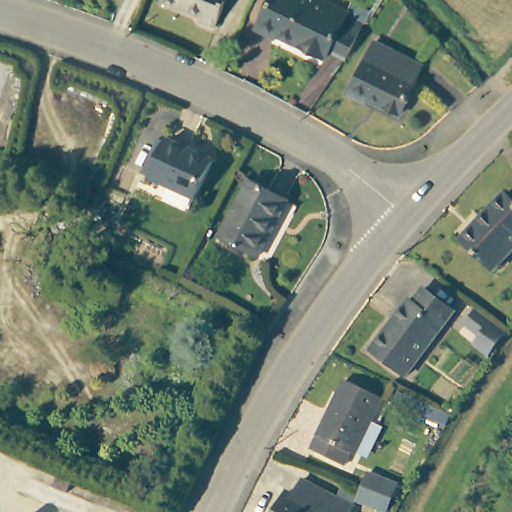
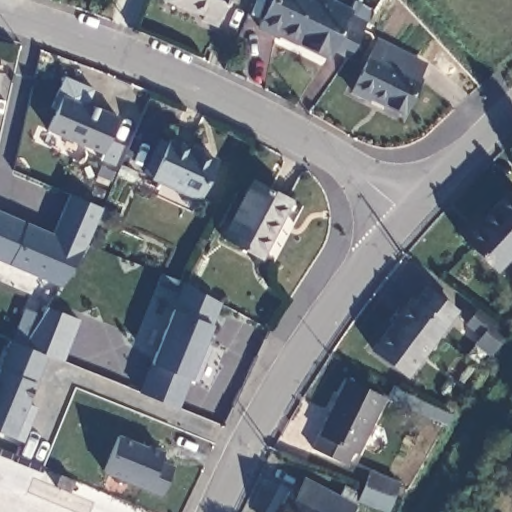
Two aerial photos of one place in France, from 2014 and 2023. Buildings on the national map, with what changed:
unchanged [(217,24),(202,16),(204,10),(177,0),(228,0),(217,24)]
unchanged [(367,15),(345,54),(331,45),(327,54),(280,30),(276,36),(258,27),(271,0),(337,0),(367,15)]
unchanged [(403,107),(371,88),(365,90),(352,84),(380,34),(408,50),(422,59),(415,72),(423,77),(403,107)]
new [(87,103),(120,118),(110,139),(122,145),(113,165),(100,159),(102,154),(46,130),(54,111),(47,108),(62,75),(94,88),(87,103)]
unchanged [(209,159),(192,197),(147,176),(166,137),(209,159)]
demolished [(0,185),(0,176),(2,176),(0,185)]
unchanged [(290,204),(256,260),(220,238),(255,182),(290,204)]
new [(66,192),(102,206),(83,247),(60,286),(0,262),(0,212),(49,231),(66,192)]
unchanged [(512,198),(512,251),(496,268),(463,235),(506,192),(512,198)]
new [(211,325),(204,344),(211,347),(195,383),(189,380),(177,410),(137,395),(150,364),(172,308),(181,281),(221,302),(211,325)]
unchanged [(456,310),(406,376),(372,348),(410,300),(416,298),(426,287),(456,310)]
new [(63,362),(46,355),(8,338),(21,307),(40,315),(46,305),(80,320),(63,362)]
unchanged [(481,307),(511,332),(490,360),(473,348),(481,338),(466,325),(481,307)]
new [(25,404),(37,407),(22,442),(11,436),(0,432),(0,357),(8,338),(46,355),(33,384),(25,404)]
unchanged [(386,397),(362,453),(354,451),(348,463),(313,449),(346,380),(386,397)]
new [(117,433),(145,446),(146,443),(163,450),(157,460),(172,466),(160,494),(147,489),(102,472),(117,433)]
unchanged [(388,512),(383,512),(358,502),(372,472),(398,483),(388,512)]
unchanged [(350,512),(277,512),(287,490),(292,492),(302,475),(356,503),(350,512)]

